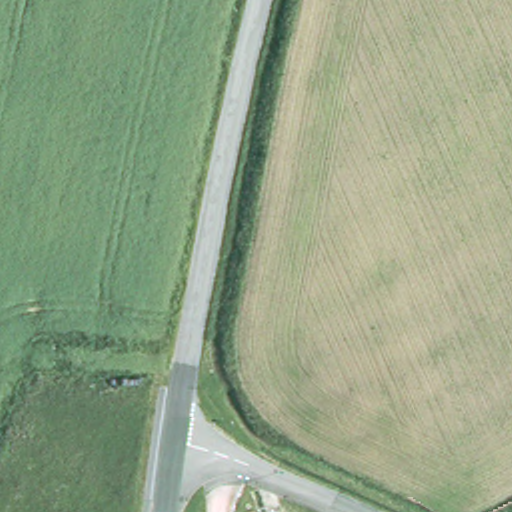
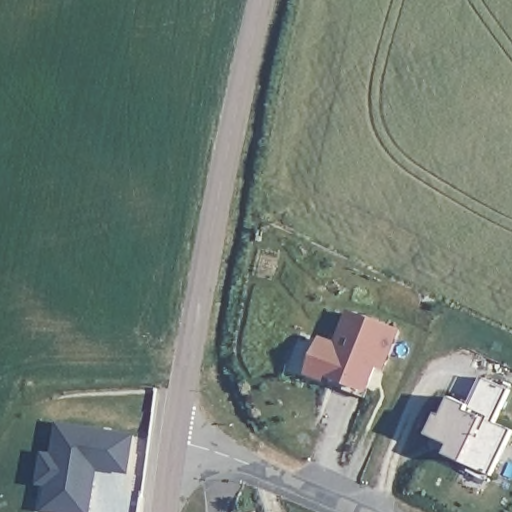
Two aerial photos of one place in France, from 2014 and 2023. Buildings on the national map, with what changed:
new [(378,369),(369,392),(336,379),(334,385),(307,375),(322,336),(337,342),(348,311),(401,331),(386,372),(378,369)]
new [(507,390),(493,423),(510,430),(491,474),(465,462),(447,455),(452,445),(428,435),(438,413),(443,416),(451,398),(468,405),(481,377),(507,390)]
new [(41,482),(45,456),(55,457),(60,426),(131,436),(126,471),(95,466),(93,481),(89,512),(75,512),(57,509),(47,508),(51,483),(41,482)]

